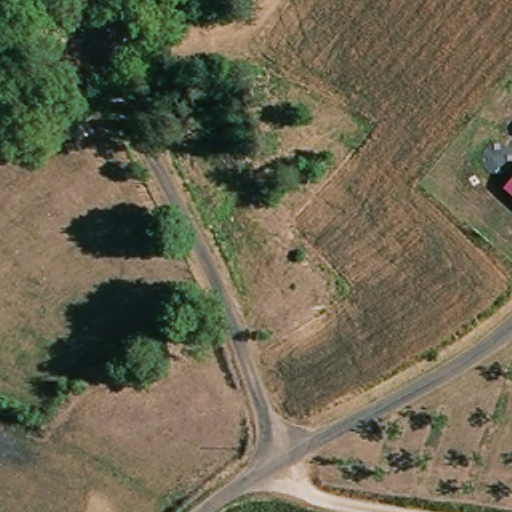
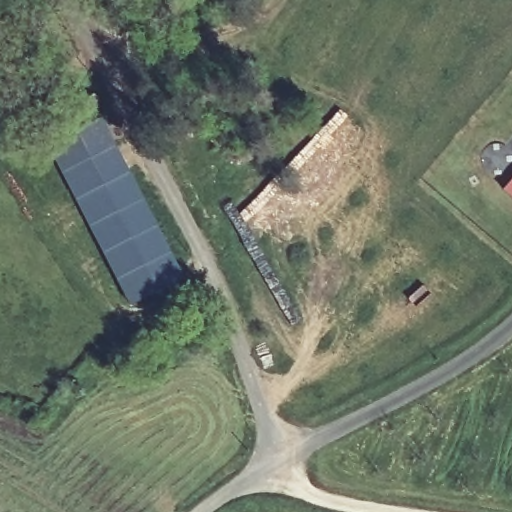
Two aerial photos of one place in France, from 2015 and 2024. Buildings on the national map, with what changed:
new [(102,117),(129,170),(186,280),(130,307),(50,149),(102,117)]
unchanged [(477,178),(471,170),(468,161),(472,152),(479,147),(486,146),(495,149),(501,158),(500,168),(495,176),(486,179),(477,178)]

